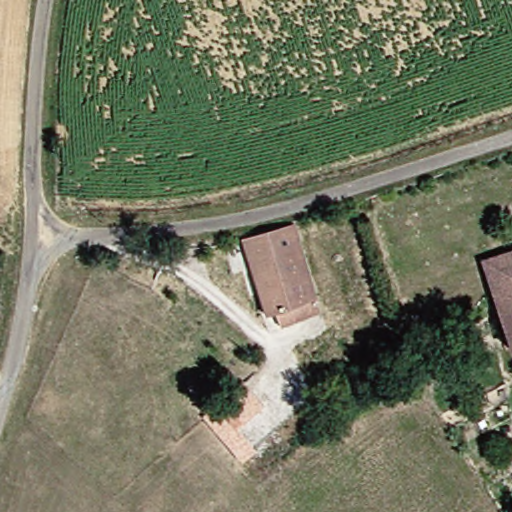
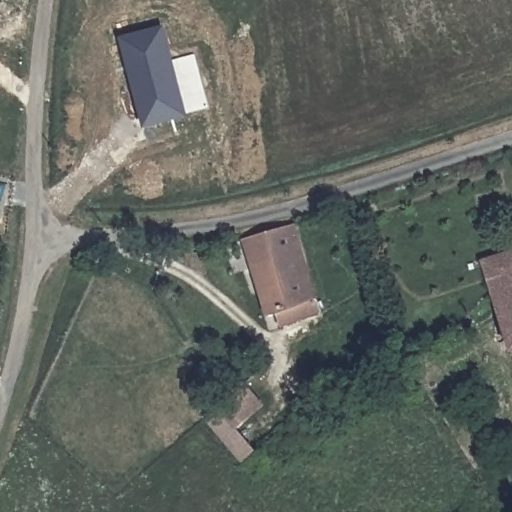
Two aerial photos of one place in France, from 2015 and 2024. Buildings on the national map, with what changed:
new [(189,116),(144,130),(119,38),(163,25),(189,116)]
unchanged [(334,312),(294,321),(291,312),(278,315),(255,237),(305,222),(334,312)]
unchanged [(512,260),(512,307),(497,266),(512,260)]
unchanged [(243,462),(203,417),(243,379),(265,406),(241,428),(256,450),(243,462)]

